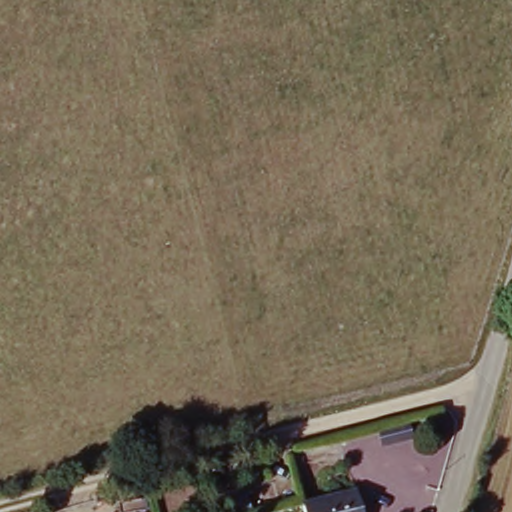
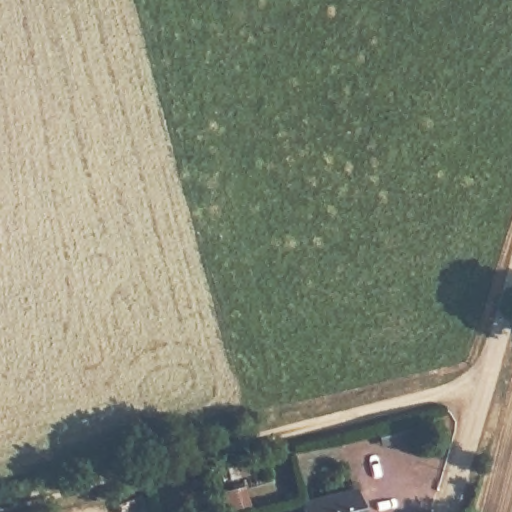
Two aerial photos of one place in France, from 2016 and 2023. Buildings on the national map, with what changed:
unchanged [(409,425),(411,441),(389,446),(385,430),(409,425)]
unchanged [(244,481),(251,511),(247,512),(234,512),(232,506),(216,510),(213,511),(211,499),(227,493),(224,484),(218,484),(214,470),(265,457),(267,470),(244,481)]
unchanged [(356,493),(360,512),(303,512),(302,506),(356,493)]

